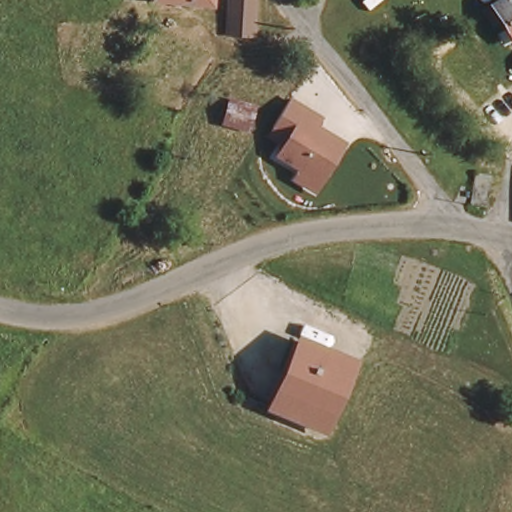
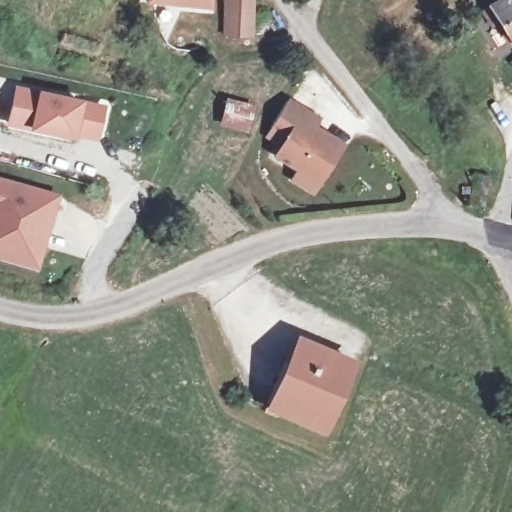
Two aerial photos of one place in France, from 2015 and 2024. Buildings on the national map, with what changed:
unchanged [(183,6),(146,2),(146,0),(201,0),(202,7),(183,6)]
unchanged [(222,39),(222,0),(244,0),(241,41),(222,39)]
unchanged [(482,7),(494,0),(512,0),(512,39),(501,46),(482,7)]
new [(96,137),(72,136),(34,129),(11,124),(18,90),(41,95),(77,102),(103,107),(96,137)]
unchanged [(313,197),(288,182),(295,172),(273,159),(279,148),(265,140),(289,99),(322,120),(317,127),(346,145),(313,197)]
unchanged [(221,124),(229,102),(261,106),(249,132),(221,124)]
new [(37,270),(0,260),(0,178),(61,196),(37,270)]
unchanged [(462,206),(465,178),(482,180),(480,207),(462,206)]
unchanged [(323,432),(271,406),(302,342),(355,367),(323,432)]

